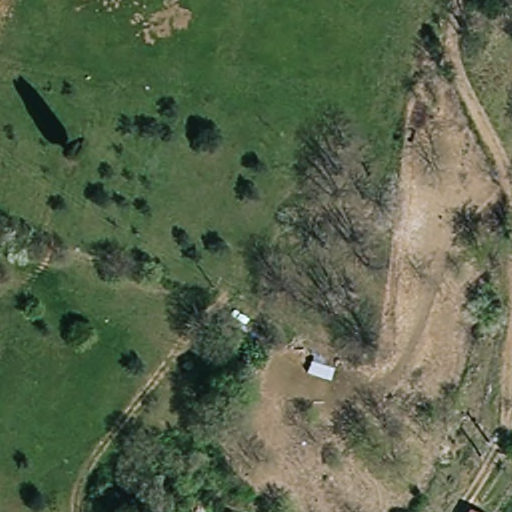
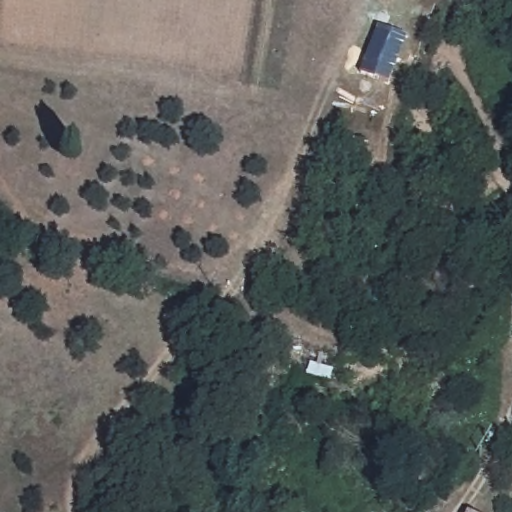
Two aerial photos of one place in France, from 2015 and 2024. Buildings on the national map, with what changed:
new [(406,36),(390,84),(360,74),(377,25),(406,36)]

